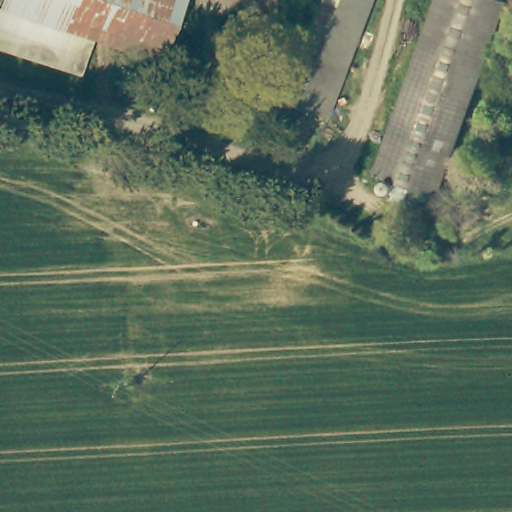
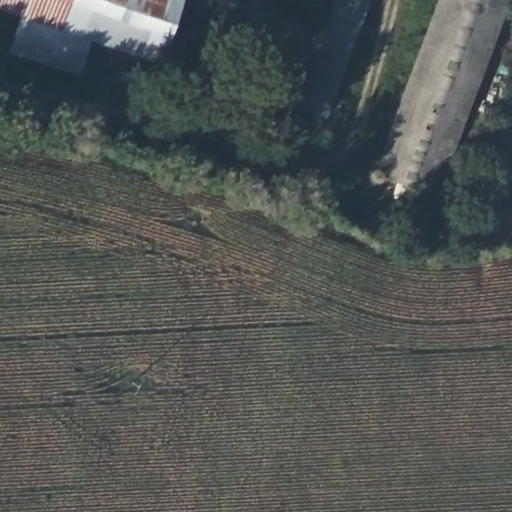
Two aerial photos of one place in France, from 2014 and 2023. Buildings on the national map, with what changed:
unchanged [(148,57),(90,36),(62,26),(0,5),(0,0),(164,0),(168,1),(148,57)]
unchanged [(164,0),(169,0),(168,1),(164,0)]
unchanged [(339,0),(299,106),(284,101),(321,0),(339,0)]
unchanged [(370,0),(328,117),(299,106),(339,0),(370,0)]
unchanged [(466,115),(435,200),(375,178),(440,0),(501,0),(508,2),(466,115)]
unchanged [(90,36),(77,72),(0,45),(0,5),(62,26),(90,36)]

